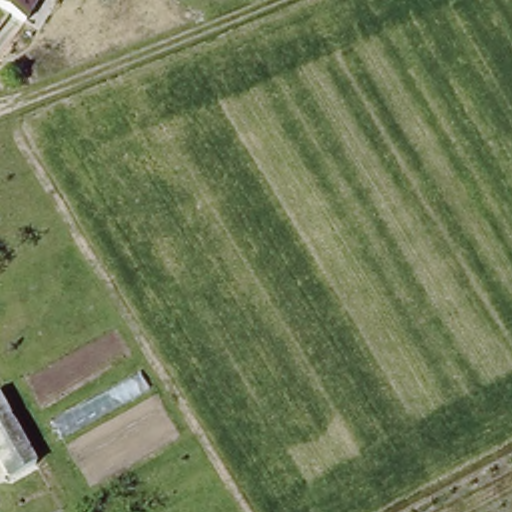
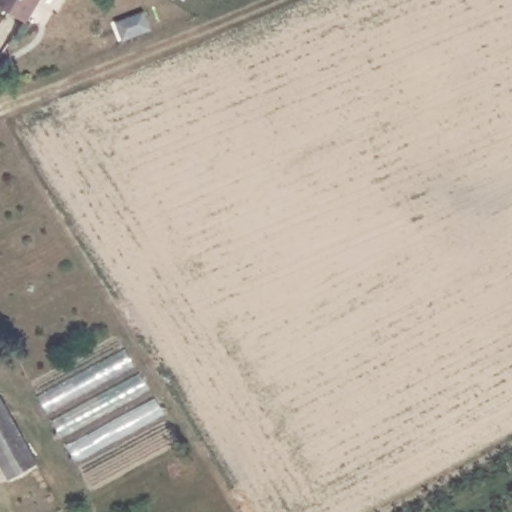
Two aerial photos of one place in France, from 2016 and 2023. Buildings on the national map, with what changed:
unchanged [(27,22),(0,5),(0,0),(41,0),(27,22)]
unchanged [(0,455),(0,401),(13,425),(36,466),(13,478),(0,455)]

